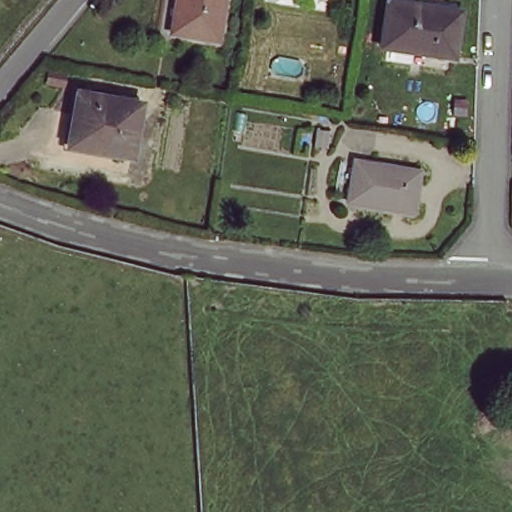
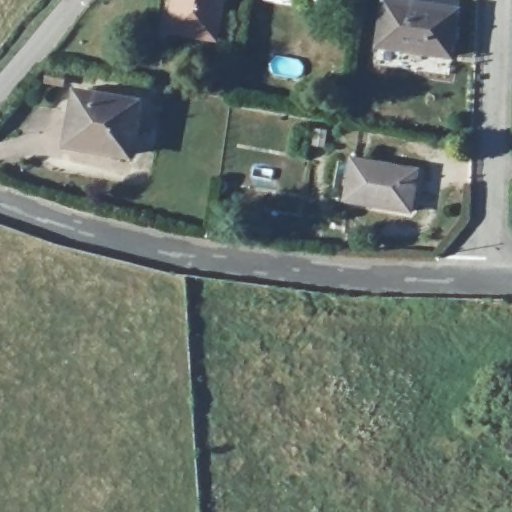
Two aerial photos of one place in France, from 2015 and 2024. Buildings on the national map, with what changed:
unchanged [(170,35),(176,0),(221,0),(215,42),(170,35)]
unchanged [(460,22),(452,66),(380,54),(388,8),(460,22)]
unchanged [(136,105),(129,159),(67,148),(76,95),(136,105)]
unchanged [(417,172),(411,212),(346,202),(352,161),(417,172)]

